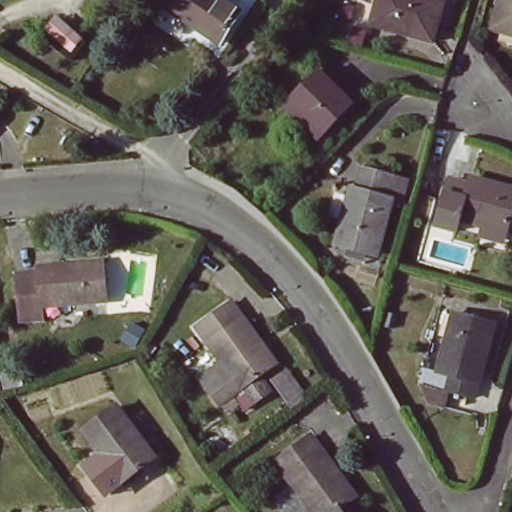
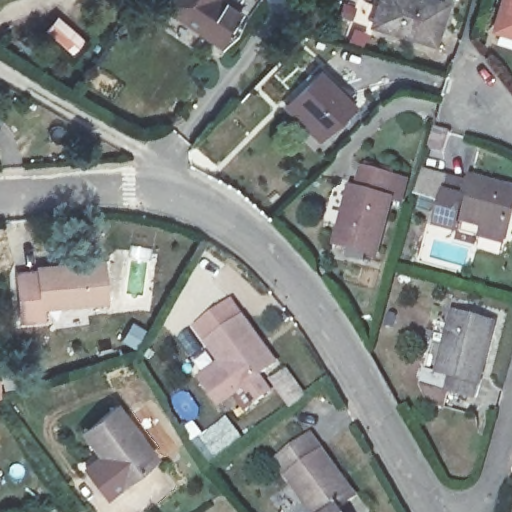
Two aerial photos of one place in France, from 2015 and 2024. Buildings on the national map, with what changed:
unchanged [(159,10),(166,0),(251,0),(218,47),(159,10)]
unchanged [(434,42),(374,26),(381,0),(442,0),(446,1),(434,42)]
unchanged [(494,27),(501,0),(512,0),(512,33),(494,27)]
unchanged [(281,104),(289,98),(321,71),(352,104),(324,132),(316,140),(281,104)]
unchanged [(333,245),(348,186),(354,187),(358,165),(410,178),(403,205),(396,204),(379,258),(333,245)]
unchanged [(463,192),(466,184),(512,197),(512,201),(501,237),(458,223),(453,240),(432,234),(447,186),(463,192)]
unchanged [(40,271),(39,265),(106,261),(108,302),(39,306),(40,318),(18,320),(15,273),(40,271)]
unchanged [(238,350),(213,317),(247,292),(291,351),(238,391),(226,373),(219,365),(238,350)]
unchanged [(491,329),(471,400),(429,387),(451,318),(491,329)]
unchanged [(282,366),(291,378),(273,390),(265,380),(282,366)]
unchanged [(104,455),(83,433),(116,403),(160,451),(133,476),(128,480),(104,455)]
unchanged [(358,496),(341,508),(343,512),(317,512),(278,462),(311,436),(358,496)]

